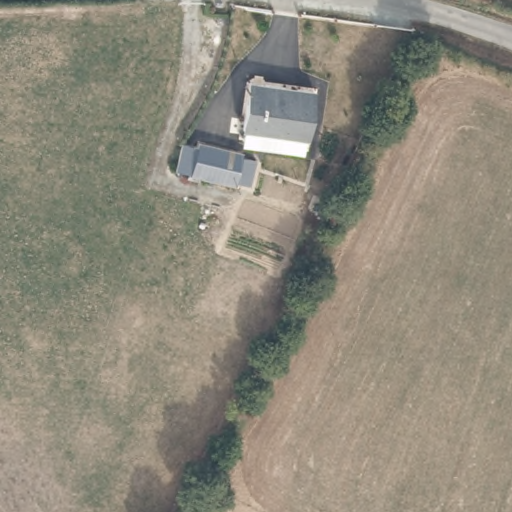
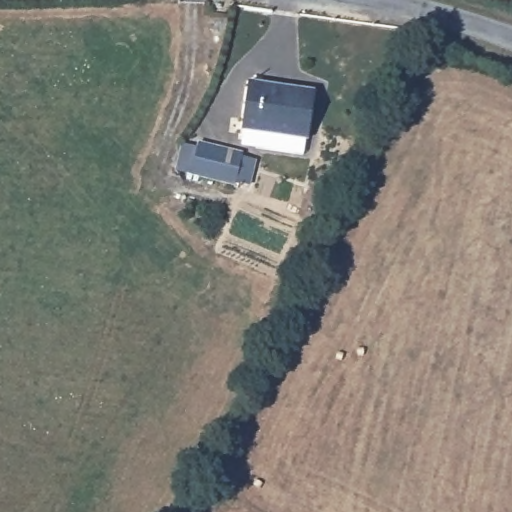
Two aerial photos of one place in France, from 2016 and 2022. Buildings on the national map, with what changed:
unchanged [(322,87),(311,164),(253,155),(254,149),(235,145),(243,75),(322,87)]
unchanged [(242,157),(262,161),(256,194),(235,189),(232,195),(182,181),(162,177),(171,143),(182,135),(190,137),(242,151),(242,157)]

